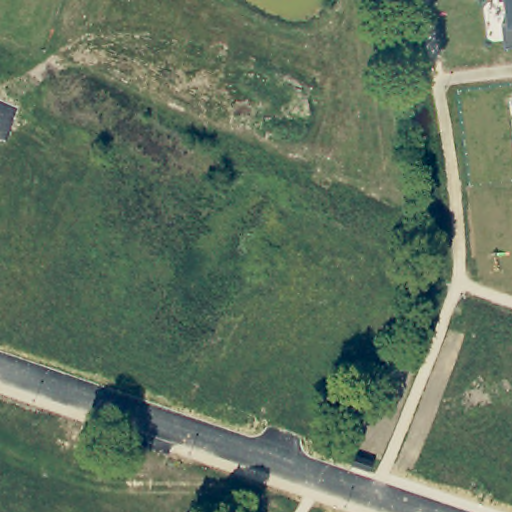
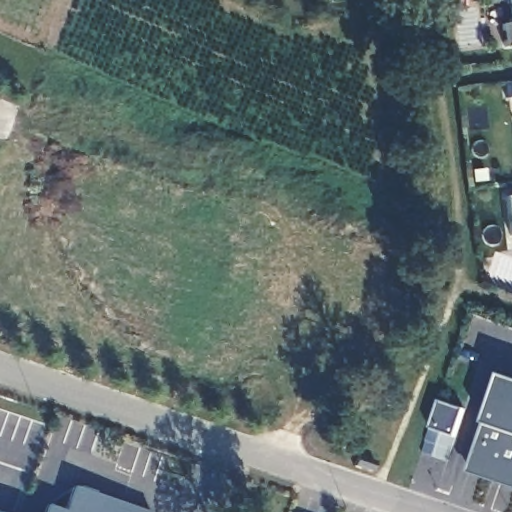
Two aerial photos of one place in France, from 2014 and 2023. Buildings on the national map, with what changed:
unchanged [(512,0),(512,47),(506,48),(502,27),(507,26),(505,0),(512,0)]
new [(502,378),(512,381),(512,488),(470,473),(487,425),(502,378)]
new [(431,427),(440,403),(463,410),(454,436),(442,432),(435,457),(423,455),(431,427)]
new [(47,505),(65,510),(73,487),(147,512),(45,512),(47,505)]

